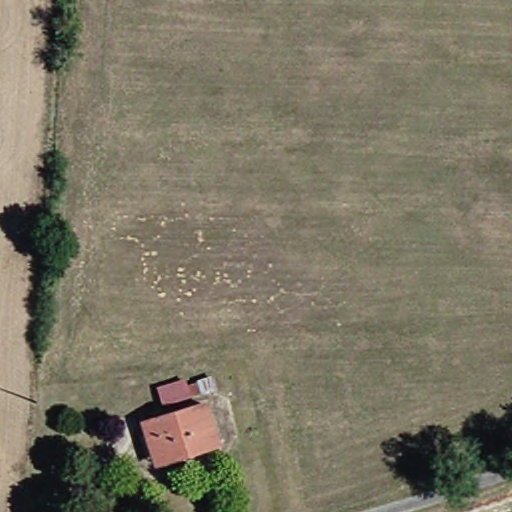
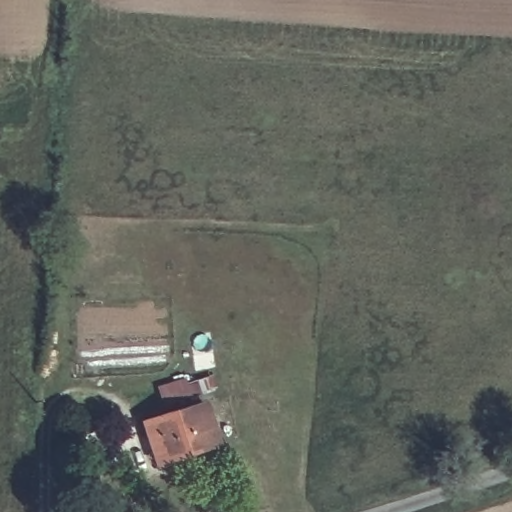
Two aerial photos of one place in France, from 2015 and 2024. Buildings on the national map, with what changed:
unchanged [(210,407),(216,448),(155,457),(150,415),(210,407)]

